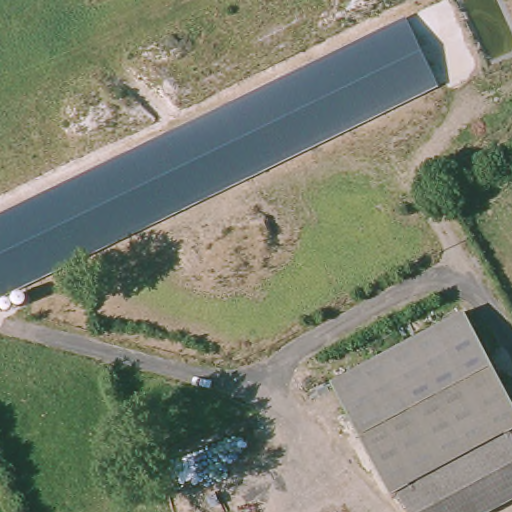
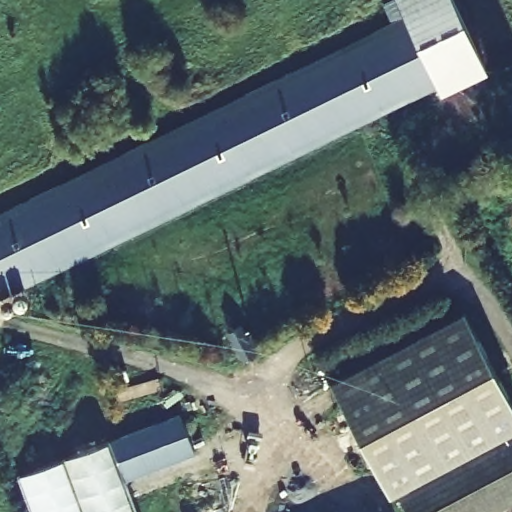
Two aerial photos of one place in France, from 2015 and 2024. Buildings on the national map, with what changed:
new [(489,72),(442,95),(439,88),(406,16),(404,17),(396,0),(454,0),(489,72)]
unchanged [(406,16),(439,88),(0,298),(0,212),(406,16)]
unchanged [(501,378),(512,399),(512,432),(511,432),(509,432),(421,478),(396,492),(389,495),(331,385),(464,315),(501,378)]
new [(180,412),(197,452),(128,476),(142,512),(33,512),(18,473),(180,412)]
unchanged [(509,432),(512,437),(512,489),(469,512),(439,512),(421,478),(509,432)]
unchanged [(512,437),(509,432),(511,432),(512,432),(512,437)]
unchanged [(396,492),(421,478),(439,512),(407,512),(398,495),(396,492)]

